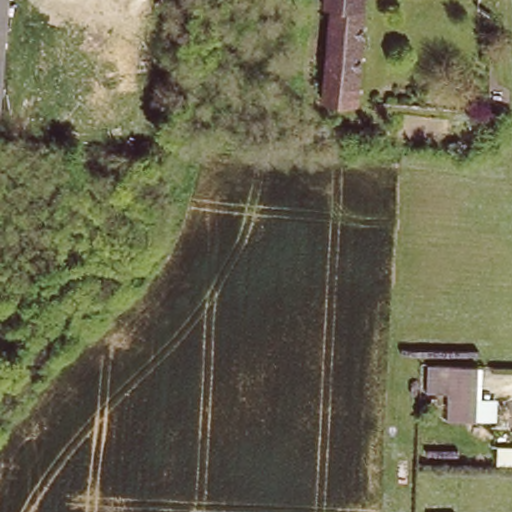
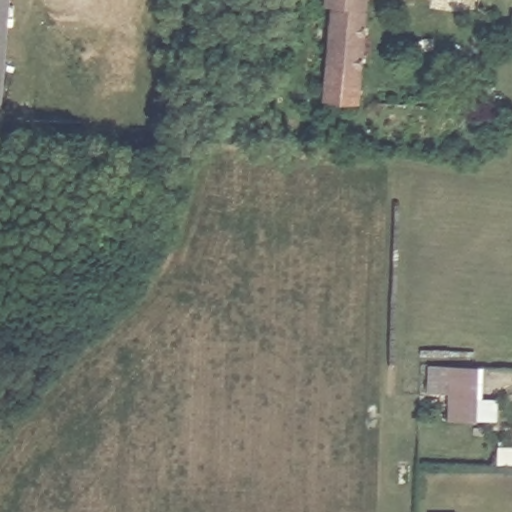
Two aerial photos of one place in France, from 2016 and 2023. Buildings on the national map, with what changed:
unchanged [(0,96),(0,50),(0,0),(15,0),(10,51),(7,96),(5,118),(0,118),(0,96)]
unchanged [(360,104),(324,101),(332,7),(323,6),(324,0),(368,0),(360,104)]
unchanged [(477,367),(475,424),(450,422),(452,366),(477,367)]

